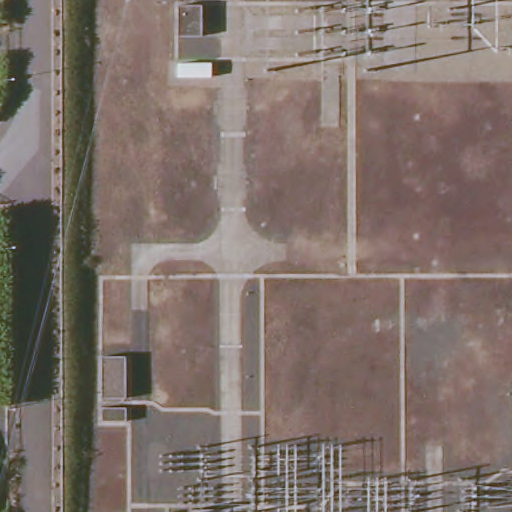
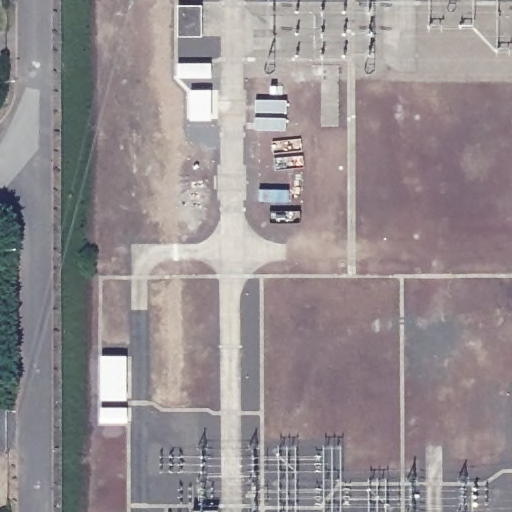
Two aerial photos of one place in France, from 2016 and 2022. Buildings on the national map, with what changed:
unchanged [(176,33),(176,4),(202,5),(202,33),(176,33)]
unchanged [(102,393),(102,352),(125,352),(124,393),(102,393)]
unchanged [(96,424),(97,411),(125,412),(125,425),(96,424)]

